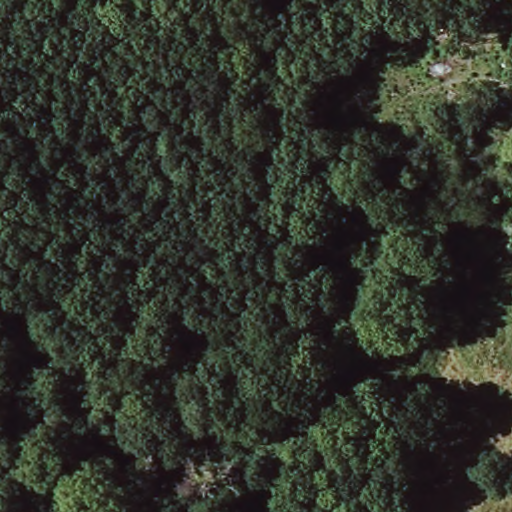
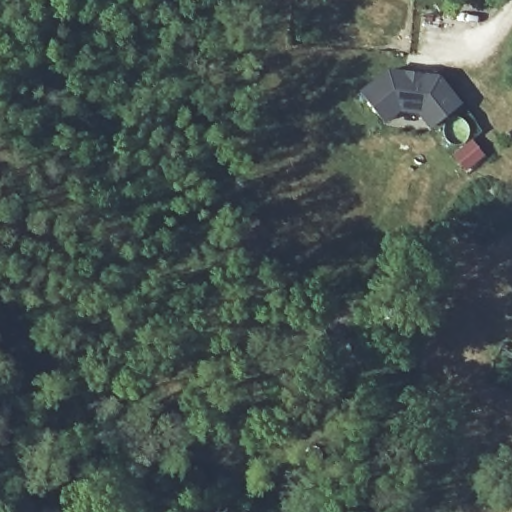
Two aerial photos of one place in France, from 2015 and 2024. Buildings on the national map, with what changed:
new [(387,69),(405,71),(405,76),(418,78),(419,73),(437,75),(458,102),(429,125),(417,110),(397,108),(382,120),(359,91),(387,69)]

